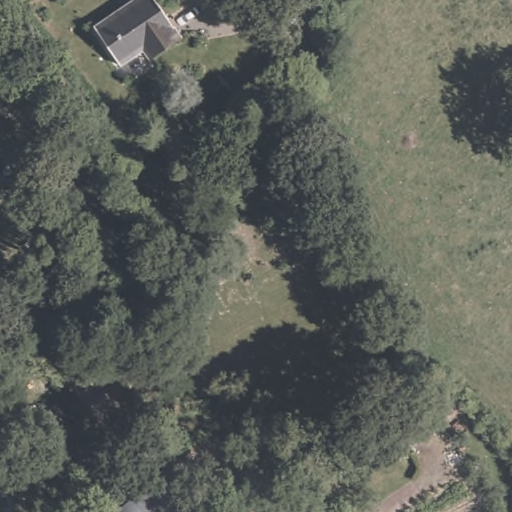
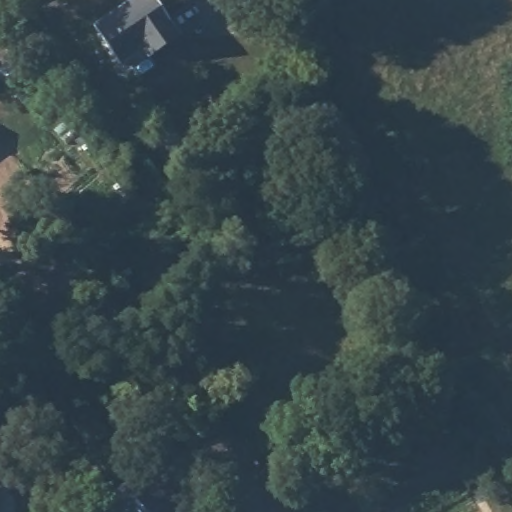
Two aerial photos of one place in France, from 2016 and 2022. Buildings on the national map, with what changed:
unchanged [(140,46),(118,58),(96,16),(125,1),(129,7),(143,0),(159,0),(179,38),(147,58),(140,46)]
unchanged [(316,223),(327,244),(303,257),(293,239),(316,223)]
unchanged [(176,506),(169,512),(121,512),(118,508),(156,479),(176,506)]

